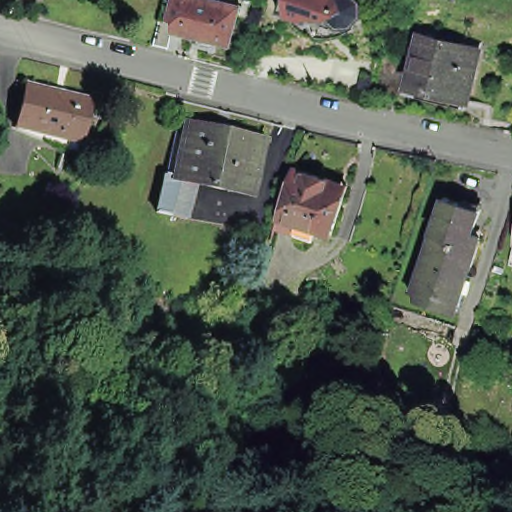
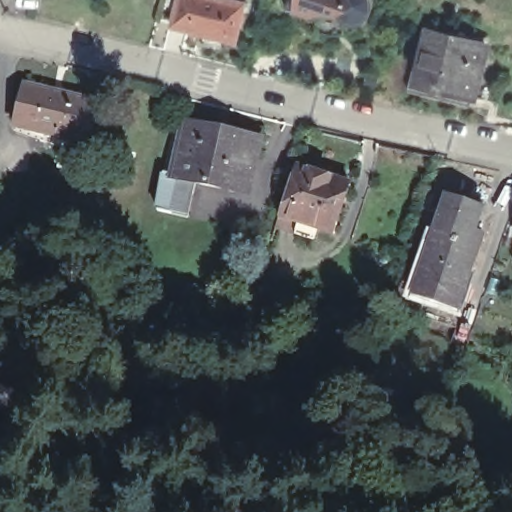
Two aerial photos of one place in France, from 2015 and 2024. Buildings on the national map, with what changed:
unchanged [(233,44),(221,40),(220,47),(200,43),(202,36),(170,29),(175,0),(212,0),(241,6),(233,44)]
unchanged [(289,9),(291,0),(371,0),(372,8),(360,21),(337,20),(289,9)]
unchanged [(424,89),(414,87),(418,70),(422,56),(430,59),(437,29),(490,43),(477,90),(475,102),(442,94),(424,89)]
unchanged [(88,98),(77,139),(14,124),(25,81),(88,98)]
unchanged [(182,130),(259,143),(250,194),(227,191),(226,193),(195,188),(195,186),(174,182),(175,180),(182,130)]
unchanged [(350,180),(332,230),(278,213),(295,162),(350,180)]
unchanged [(187,222),(157,215),(165,179),(175,180),(174,182),(195,186),(195,188),(187,222)]
unchanged [(487,208),(479,232),(487,234),(462,313),(418,298),(452,196),(487,208)]

